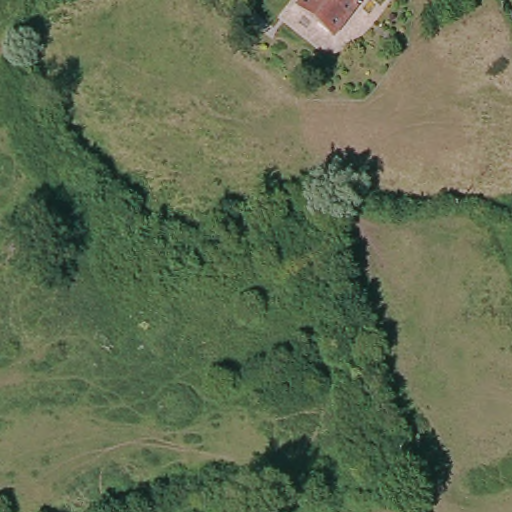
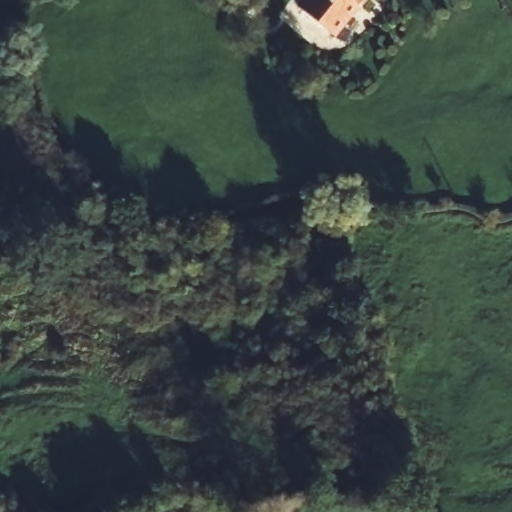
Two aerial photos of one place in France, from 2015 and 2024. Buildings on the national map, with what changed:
unchanged [(336,32),(306,7),(312,0),(361,0),(336,32)]

